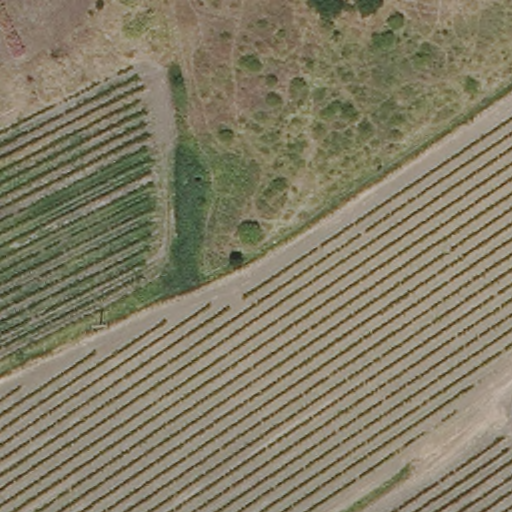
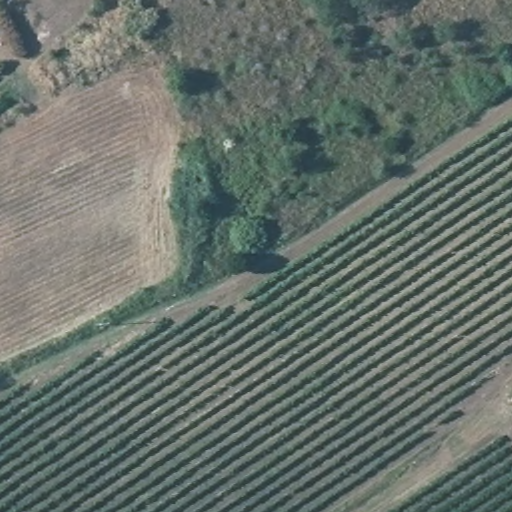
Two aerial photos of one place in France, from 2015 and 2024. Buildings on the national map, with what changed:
unchanged [(188,176),(184,161),(203,155),(208,172),(188,176)]

